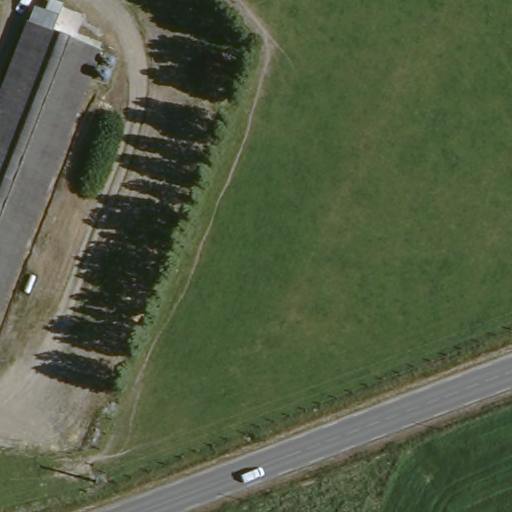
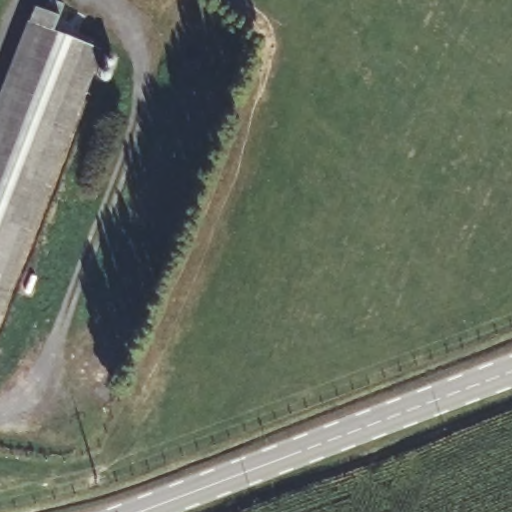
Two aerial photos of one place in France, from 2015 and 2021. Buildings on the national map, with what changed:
unchanged [(28,27),(87,52),(96,55),(40,197),(0,299),(0,97),(28,27)]

